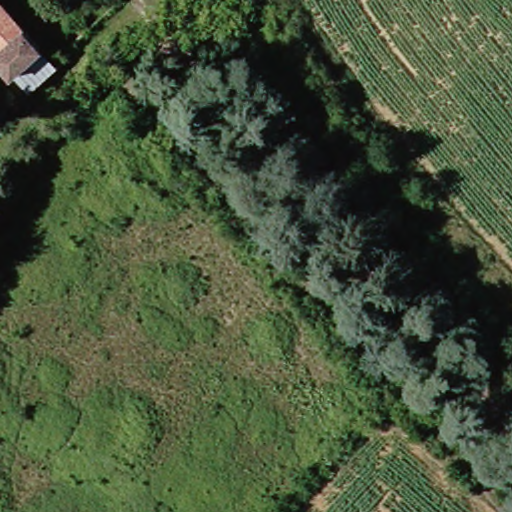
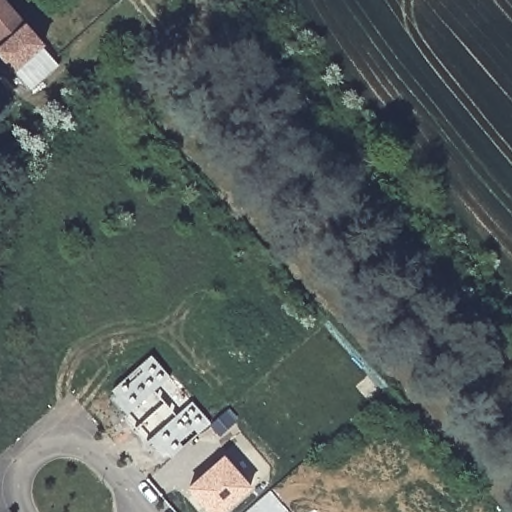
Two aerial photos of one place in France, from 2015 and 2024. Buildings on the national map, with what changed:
unchanged [(40,50),(8,79),(0,69),(0,5),(40,50)]
new [(211,425),(171,459),(166,453),(163,456),(111,392),(151,356),(170,379),(154,392),(176,417),(191,403),(211,425)]
new [(251,487),(223,512),(211,512),(190,489),(226,457),(251,487)]
new [(246,512),(271,490),(290,512),(246,512)]

